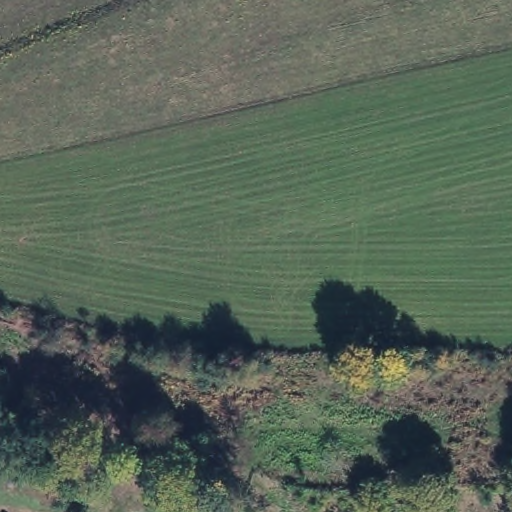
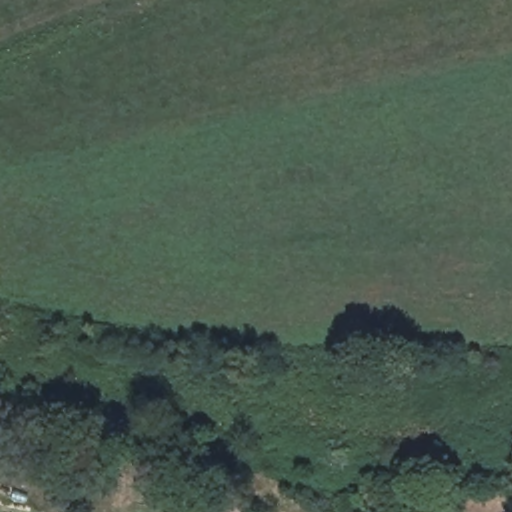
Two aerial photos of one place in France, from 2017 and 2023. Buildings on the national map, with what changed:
unchanged [(321,512),(319,504),(320,504),(352,504),(351,512),(321,512)]

